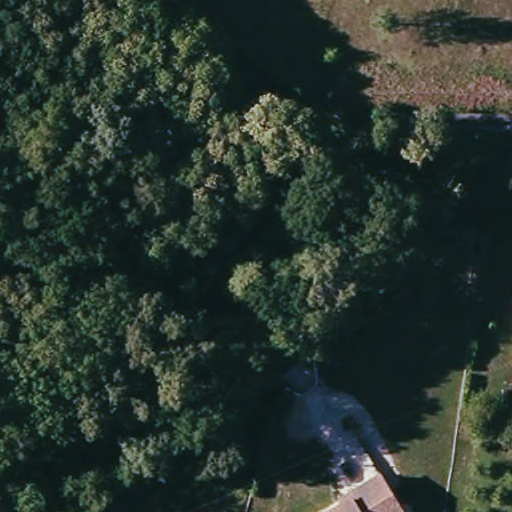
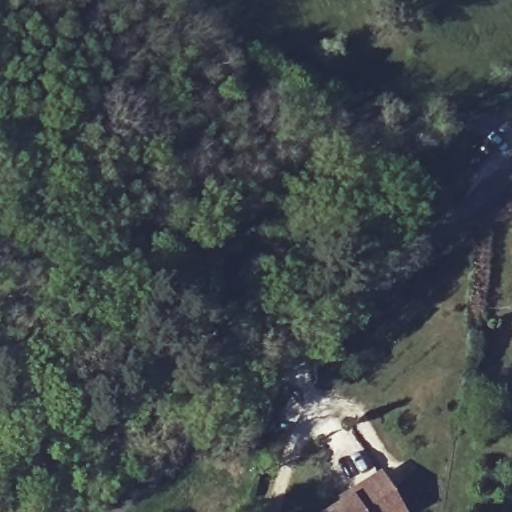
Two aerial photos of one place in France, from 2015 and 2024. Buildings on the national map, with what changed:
unchanged [(327,512),(340,504),(337,500),(347,495),(377,475),(401,512),(327,512)]

